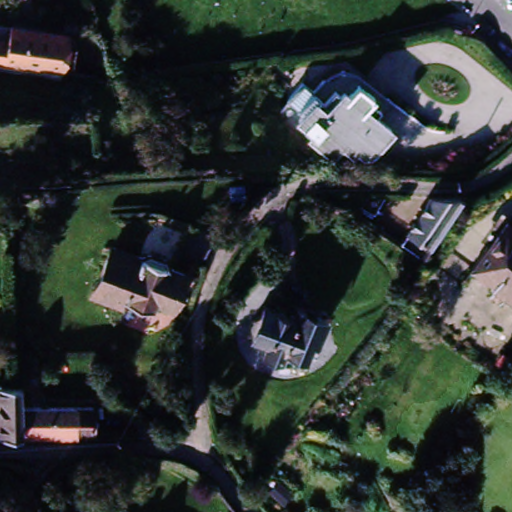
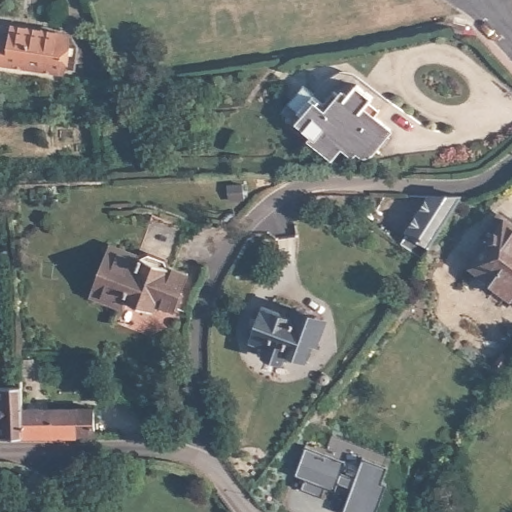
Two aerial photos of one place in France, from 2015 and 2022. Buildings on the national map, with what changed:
unchanged [(0,63),(0,27),(72,37),(65,74),(0,63)]
unchanged [(380,156),(370,148),(365,154),(353,146),(346,154),(335,144),(330,147),(322,141),(325,137),(309,122),(314,117),(297,105),(310,90),(322,98),(332,85),(337,89),(348,74),(378,98),(389,106),(380,116),(401,132),(380,156)]
unchanged [(435,241),(415,226),(438,190),(470,190),(460,207),(435,241)]
unchanged [(152,217),(185,232),(168,272),(160,268),(162,263),(136,253),(152,217)]
unchanged [(509,300),(488,283),(490,282),(471,266),(506,221),(512,225),(512,297),(511,297),(509,300)]
unchanged [(183,277),(167,313),(148,306),(145,312),(118,302),(116,309),(85,297),(110,247),(134,257),(136,253),(162,263),(160,268),(168,272),(183,277)]
unchanged [(316,345),(309,362),(288,355),(284,366),(268,359),(272,349),(257,343),(259,339),(256,333),(258,326),(265,322),(270,312),(298,323),(302,313),(309,316),(312,312),(323,317),(323,322),(330,323),(321,346),(316,345)]
unchanged [(494,365),(500,356),(505,359),(498,367),(494,365)]
unchanged [(0,435),(0,394),(15,394),(16,412),(88,412),(88,434),(16,435),(0,435)]
new [(346,460),(343,471),(357,476),(364,457),(390,465),(383,482),(389,485),(378,512),(343,512),(352,489),(339,484),(337,490),(326,486),(323,497),(301,488),(306,480),(296,476),(307,445),(346,460)]

